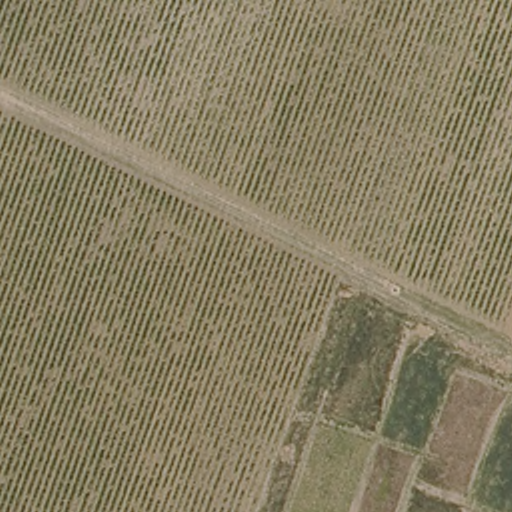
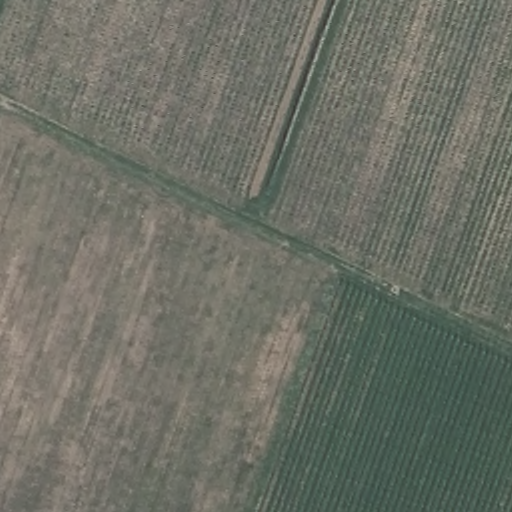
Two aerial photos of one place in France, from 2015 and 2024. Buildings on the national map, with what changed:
[]

